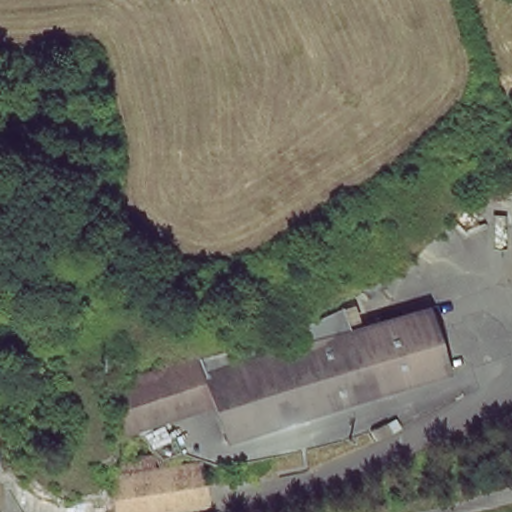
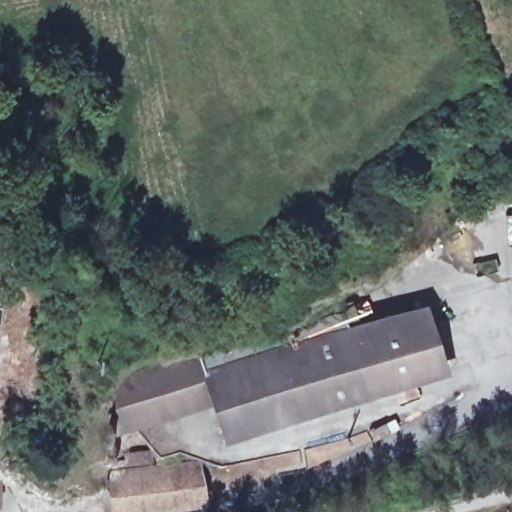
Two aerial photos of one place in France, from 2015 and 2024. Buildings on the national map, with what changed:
unchanged [(210,401),(153,415),(149,391),(254,360),(429,305),(447,372),(222,438),(210,401)]
unchanged [(160,467),(200,462),(205,497),(113,511),(112,494),(126,492),(124,463),(139,460),(138,455),(158,451),(160,467)]
unchanged [(13,464),(13,471),(13,484),(6,483),(0,483),(0,462),(2,462),(13,464)]

